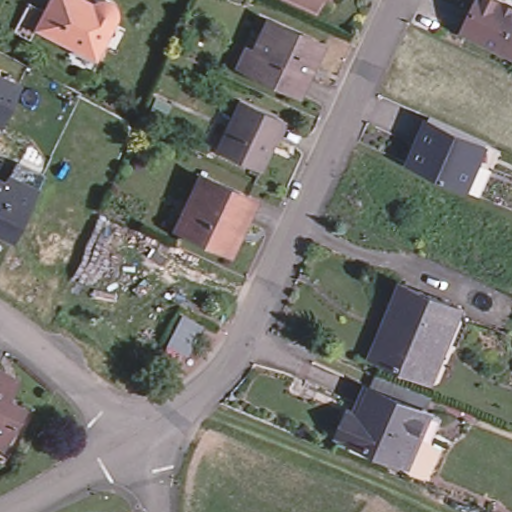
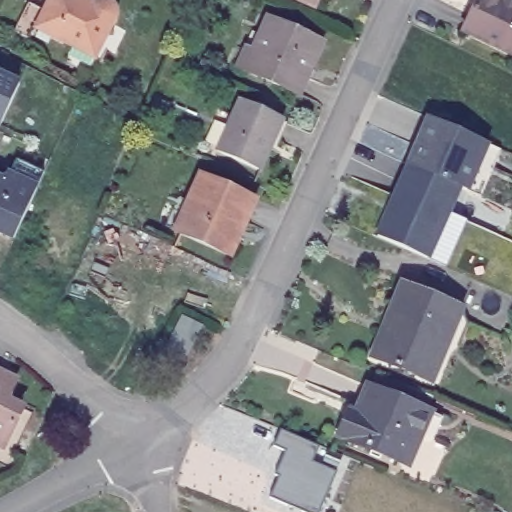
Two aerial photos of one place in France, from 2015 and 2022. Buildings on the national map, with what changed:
unchanged [(74,46),(36,26),(30,38),(15,30),(30,1),(45,9),(50,0),(110,0),(111,1),(115,3),(116,5),(118,9),(118,13),(118,15),(117,19),(96,58),(90,71),(67,60),(74,46)]
unchanged [(302,0),(323,0),(320,8),(302,0)]
unchanged [(462,30),(477,0),(512,0),(512,53),(462,30)]
unchanged [(325,48),(316,66),(312,65),(299,95),(255,75),(241,69),(257,35),(265,39),(272,24),(325,48)]
unchanged [(0,119),(0,74),(17,82),(0,119)]
unchanged [(283,119),(282,120),(280,119),(268,146),(270,148),(261,169),(217,150),(240,100),(283,119)]
unchanged [(427,116),(485,143),(476,163),(470,160),(460,185),(465,187),(464,189),(406,163),(427,116)]
unchanged [(7,175),(15,159),(42,172),(37,183),(35,188),(12,237),(0,231),(0,179),(3,181),(6,174),(7,175)]
new [(464,189),(431,261),(375,235),(406,163),(464,189)]
unchanged [(192,207),(205,179),(260,204),(250,225),(245,223),(230,256),(185,236),(170,230),(182,203),(192,207)]
unchanged [(401,283),(461,308),(445,347),(391,324),(385,321),(401,283)]
unchanged [(431,379),(377,358),(391,324),(445,347),(431,379)]
unchanged [(0,447),(0,376),(16,384),(6,403),(21,410),(3,449),(0,447)]
unchanged [(356,412),(367,386),(430,412),(419,438),(411,435),(356,412)]
unchanged [(400,462),(337,435),(348,409),(356,412),(411,435),(400,462)]
new [(320,445),(314,460),(337,470),(319,512),(308,512),(270,497),(280,475),(277,473),(286,450),(275,445),(280,430),(320,445)]

